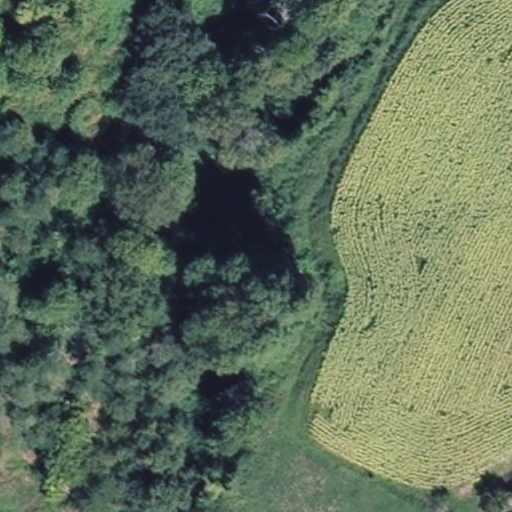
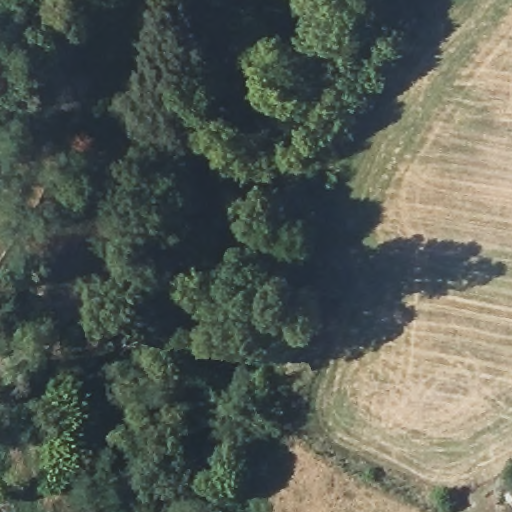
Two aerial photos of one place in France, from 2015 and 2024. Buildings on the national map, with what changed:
unchanged [(512,512),(510,512),(497,497),(512,486),(512,512)]

